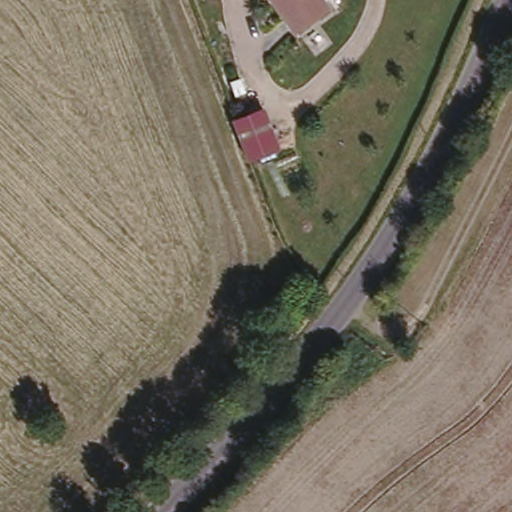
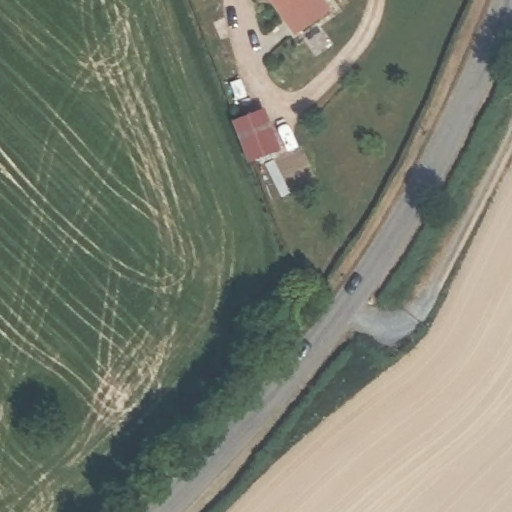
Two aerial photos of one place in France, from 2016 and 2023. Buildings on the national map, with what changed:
unchanged [(330,9),(299,33),(274,0),(322,0),(330,9)]
unchanged [(270,106),(286,142),(250,153),(235,116),(270,106)]

